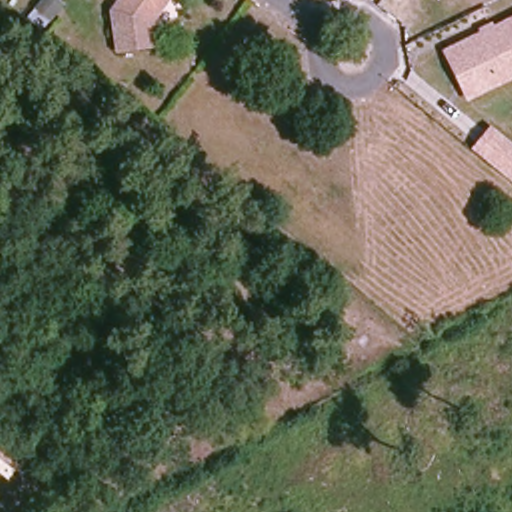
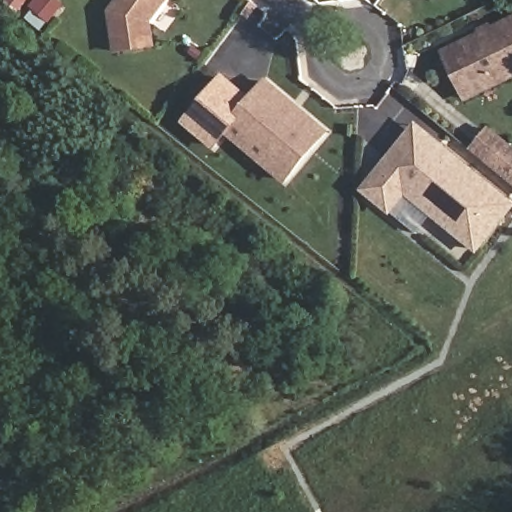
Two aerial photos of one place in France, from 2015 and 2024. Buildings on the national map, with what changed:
unchanged [(149,21),(151,46),(114,52),(108,11),(114,4),(117,0),(164,0),(149,21)]
unchanged [(512,16),(512,79),(466,100),(442,49),(479,32),(477,28),(493,21),(494,25),(512,16)]
new [(285,186),(228,137),(217,149),(184,121),(224,73),(251,96),(268,77),(330,130),(285,186)]
new [(414,123),(439,141),(512,196),(512,202),(481,244),(407,189),(398,202),(384,204),(373,195),(371,182),(402,140),(414,123)]
unchanged [(512,143),(512,182),(471,148),(491,125),(512,143)]

